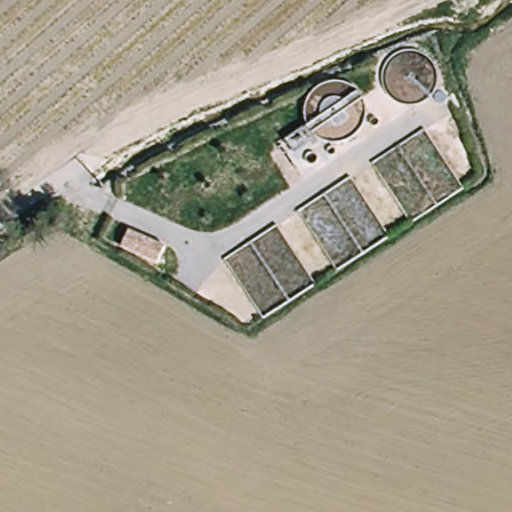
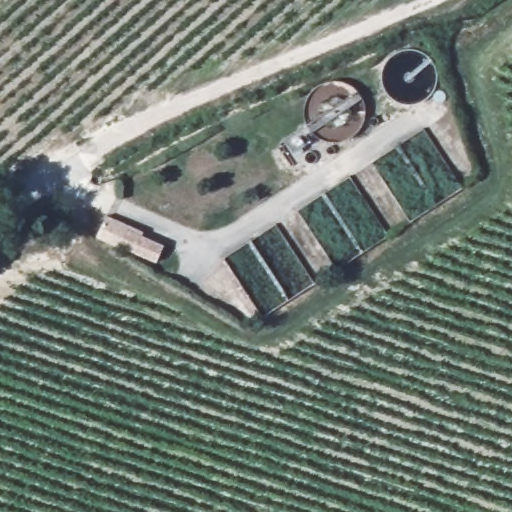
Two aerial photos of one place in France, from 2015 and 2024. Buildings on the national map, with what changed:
unchanged [(126,232),(162,247),(155,263),(119,249),(126,232)]

